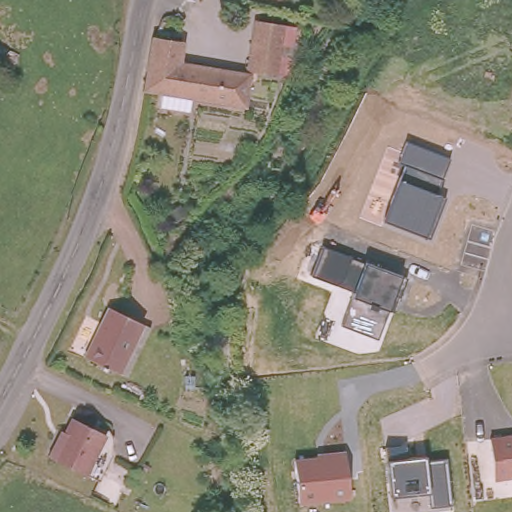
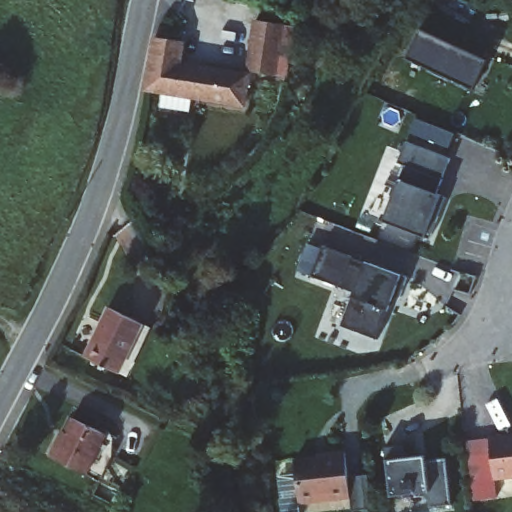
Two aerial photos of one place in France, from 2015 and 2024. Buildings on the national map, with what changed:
unchanged [(266,71),(245,67),(254,19),(275,22),(270,55),(266,71)]
new [(485,60),(472,90),(406,60),(419,29),(485,60)]
unchanged [(171,90),(170,100),(141,96),(154,35),(180,40),(176,62),(245,74),(244,79),(260,81),(255,102),(171,90)]
unchanged [(401,179),(405,165),(398,162),(405,142),(450,156),(436,193),(441,195),(425,236),(384,221),(401,179)]
unchanged [(390,310),(387,313),(378,340),(342,326),(352,300),(353,297),(355,291),(354,292),(313,276),(325,248),(362,263),(365,264),(400,276),(390,310)]
unchanged [(108,303),(141,318),(117,369),(85,353),(108,303)]
unchanged [(103,431),(85,471),(48,453),(55,437),(58,439),(70,416),(103,431)]
unchanged [(490,438),(512,435),(512,479),(495,481),(490,438)]
unchanged [(386,448),(405,446),(406,460),(423,457),(424,462),(427,461),(445,460),(450,505),(431,507),(429,493),(427,491),(391,495),(388,460),(386,448)]
unchanged [(316,458),(316,453),(345,451),(350,500),(300,506),(293,460),(316,458)]

